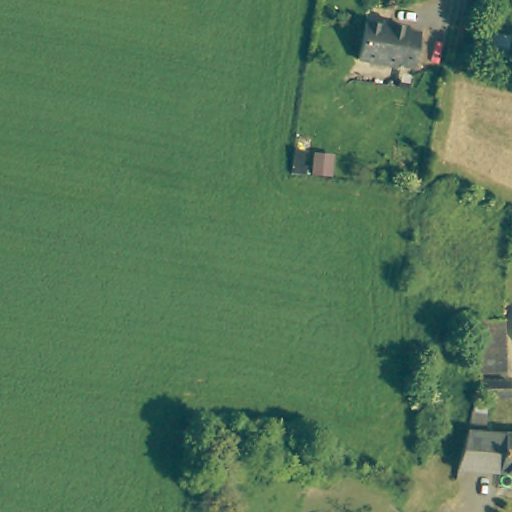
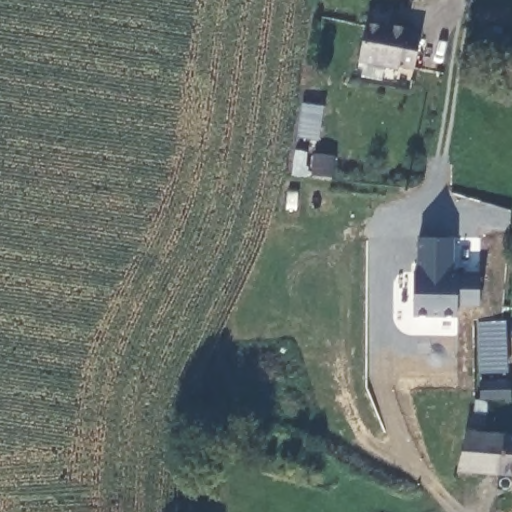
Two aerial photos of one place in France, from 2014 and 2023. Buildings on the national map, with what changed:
unchanged [(367,18),(389,22),(390,19),(406,22),(405,25),(420,29),(412,62),(398,59),(397,62),(358,55),(367,18)]
unchanged [(512,48),(497,45),(501,23),(512,25),(512,48)]
new [(415,270),(421,269),(420,237),(455,235),(455,272),(479,272),(480,307),(457,307),(457,317),(414,316),(415,270)]
unchanged [(484,322),(510,322),(512,361),(512,372),(485,373),(484,322)]
unchanged [(512,476),(458,472),(471,428),(478,402),(491,405),(491,431),(512,432),(512,476)]

